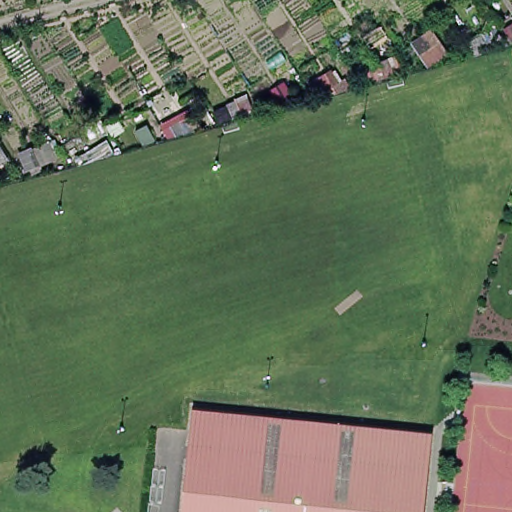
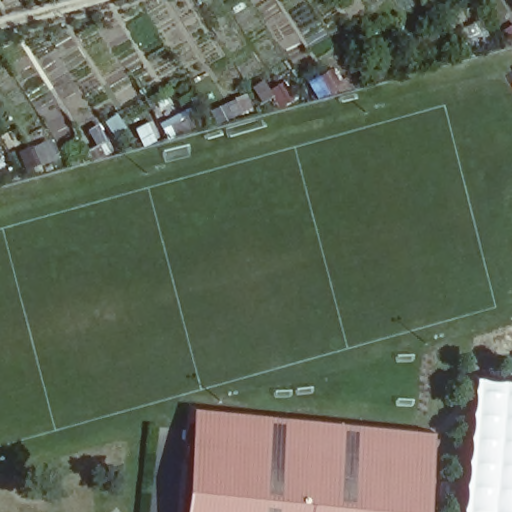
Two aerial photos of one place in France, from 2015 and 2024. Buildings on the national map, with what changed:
unchanged [(434,31),(450,59),(430,71),(414,44),(434,31)]
unchanged [(386,63),(393,79),(371,87),(364,71),(386,63)]
unchanged [(336,70),(343,83),(348,80),(353,91),(320,100),(310,85),(336,70)]
unchanged [(284,85),(293,102),(283,109),(274,92),(284,85)]
unchanged [(249,95),(253,115),(228,123),(223,110),(249,95)]
unchanged [(53,141),(59,162),(24,174),(19,155),(53,141)]
unchanged [(108,142),(115,155),(83,167),(78,156),(108,142)]
unchanged [(9,162),(0,168),(0,145),(9,162)]
new [(512,387),(512,512),(455,512),(469,382),(512,387)]
unchanged [(196,410),(219,412),(432,435),(424,512),(185,512),(194,419),(196,410)]

